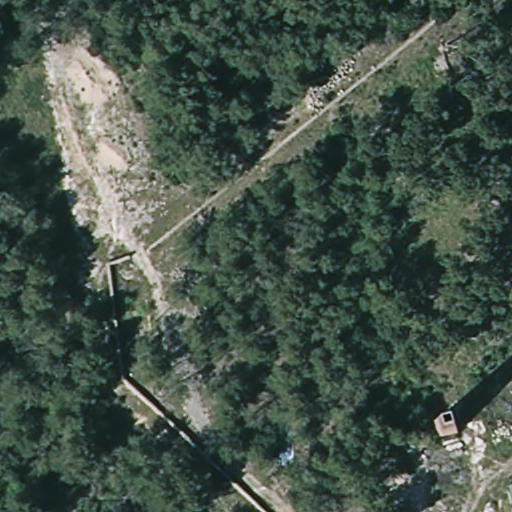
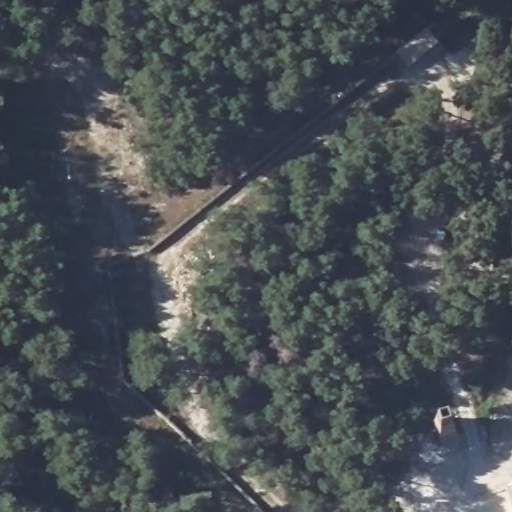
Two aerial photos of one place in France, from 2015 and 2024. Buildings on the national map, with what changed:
unchanged [(385,456),(380,437),(399,431),(404,452),(385,456)]
unchanged [(511,488),(512,488),(512,494),(511,488)]

